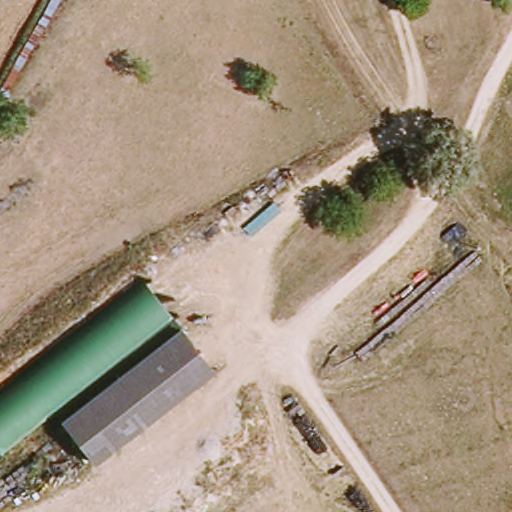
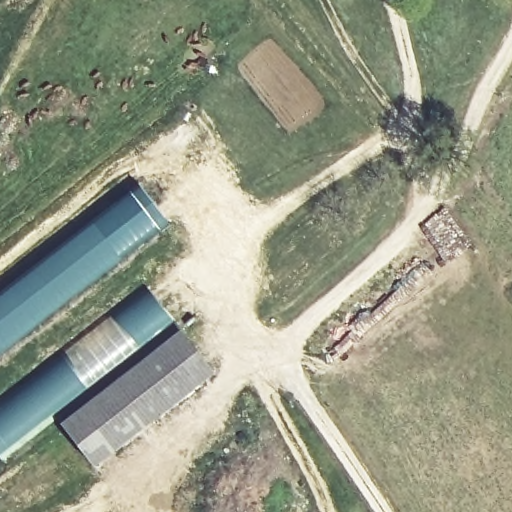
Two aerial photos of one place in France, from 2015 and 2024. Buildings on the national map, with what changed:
new [(0,356),(0,290),(137,181),(170,225),(0,356)]
unchanged [(66,432),(62,425),(4,462),(0,457),(0,400),(149,285),(179,332),(66,432)]
unchanged [(179,332),(214,370),(101,470),(66,432),(179,332)]

